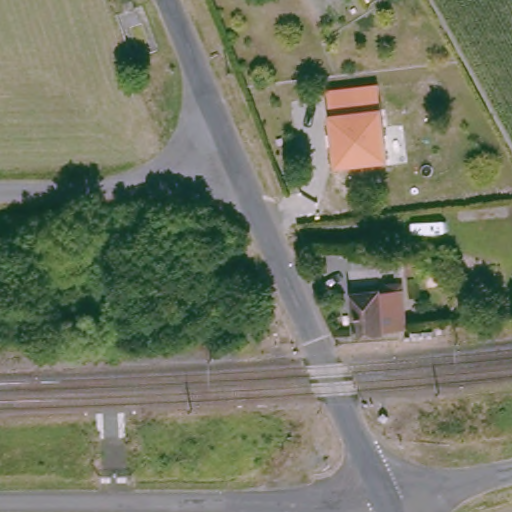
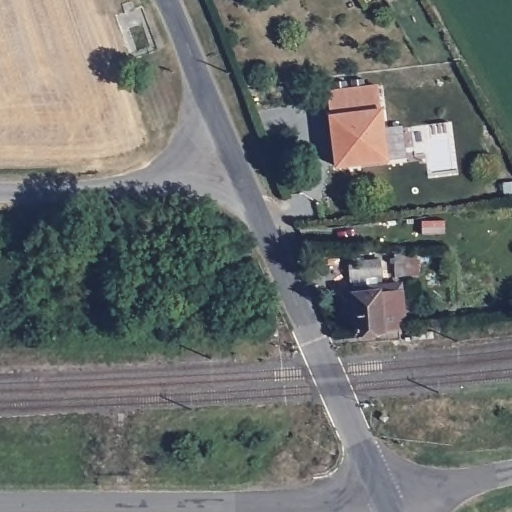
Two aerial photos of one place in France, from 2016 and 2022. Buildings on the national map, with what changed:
unchanged [(335,146),(330,147),(328,134),(335,134),(330,94),(382,86),(390,129),(406,126),(410,164),(363,170),(363,162),(337,165),(335,146)]
unchanged [(222,251),(223,263),(202,265),(200,253),(222,251)]
unchanged [(386,273),(381,273),(382,283),(405,281),(408,325),(405,326),(385,328),(360,331),(356,276),(351,276),(350,260),(385,256),(386,273)]

